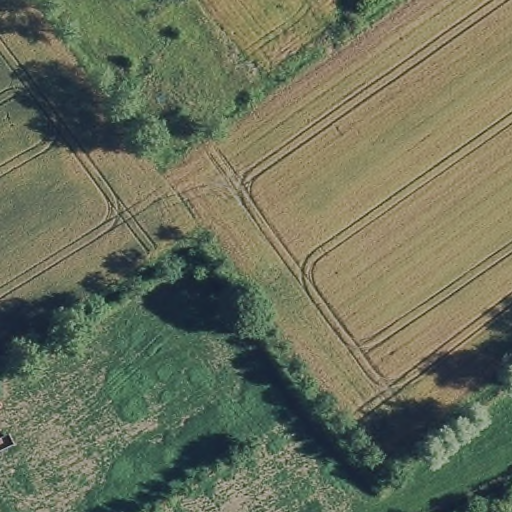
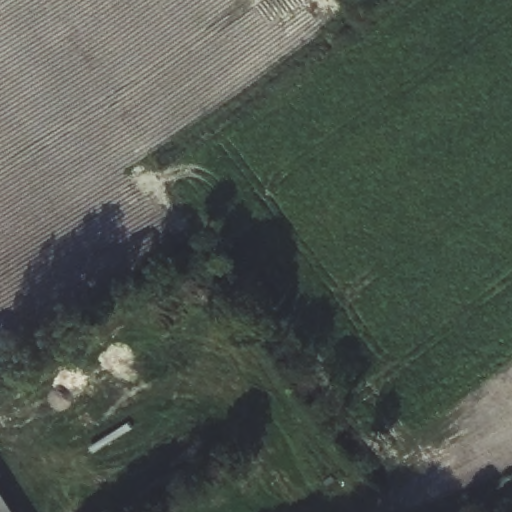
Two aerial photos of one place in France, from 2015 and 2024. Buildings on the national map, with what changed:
new [(0,512),(0,496),(10,512),(0,512)]

